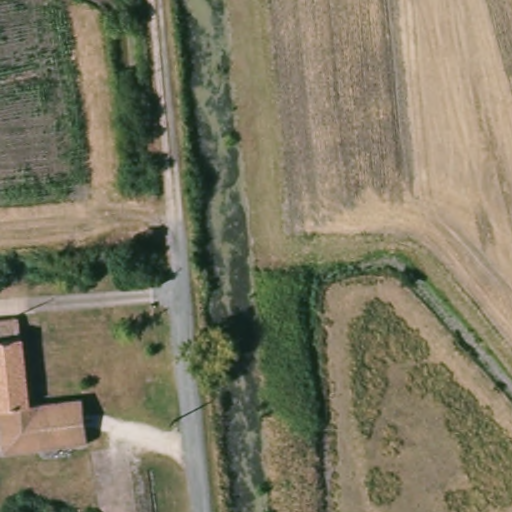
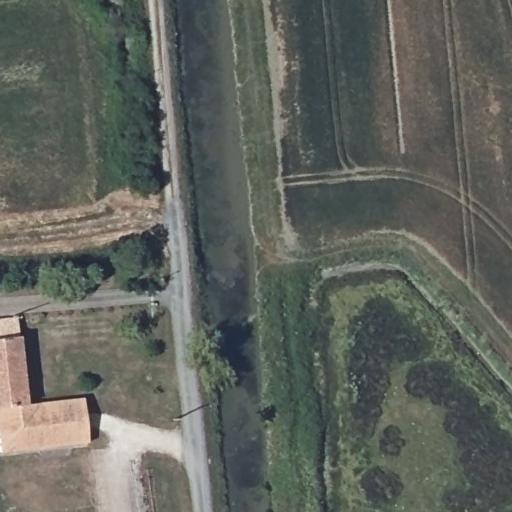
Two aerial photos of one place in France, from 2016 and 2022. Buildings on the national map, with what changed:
unchanged [(26,410),(86,404),(91,448),(4,460),(0,439),(0,331),(14,329),(26,410)]

